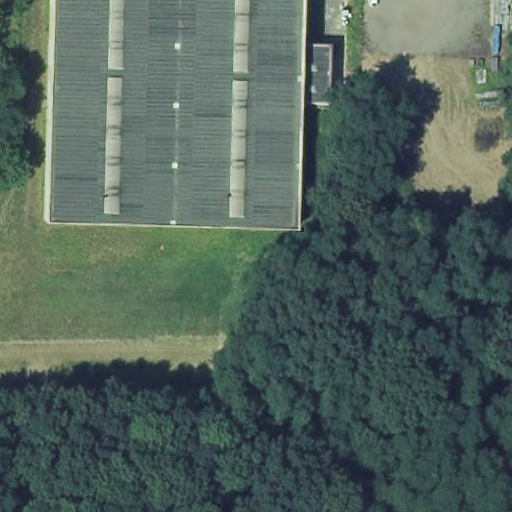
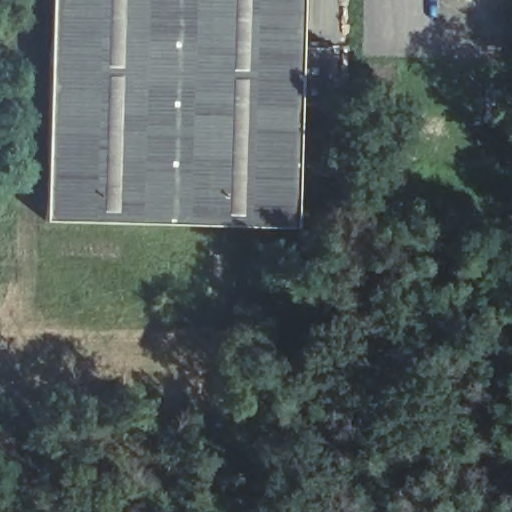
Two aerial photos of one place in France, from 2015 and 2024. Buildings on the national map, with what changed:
unchanged [(294,104),(290,226),(40,221),(45,0),(297,0),(295,45),(294,104)]
unchanged [(325,45),(324,105),(294,104),(295,45),(325,45)]

